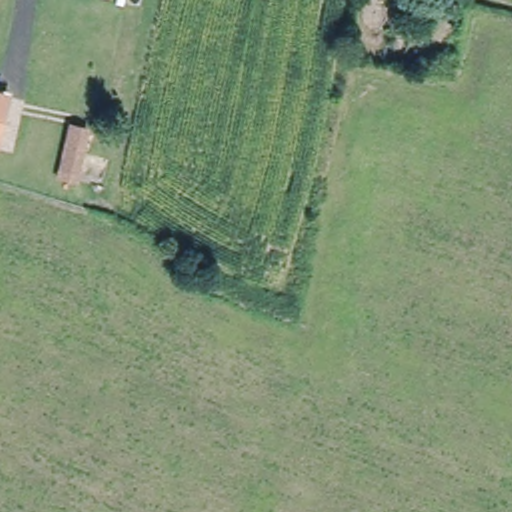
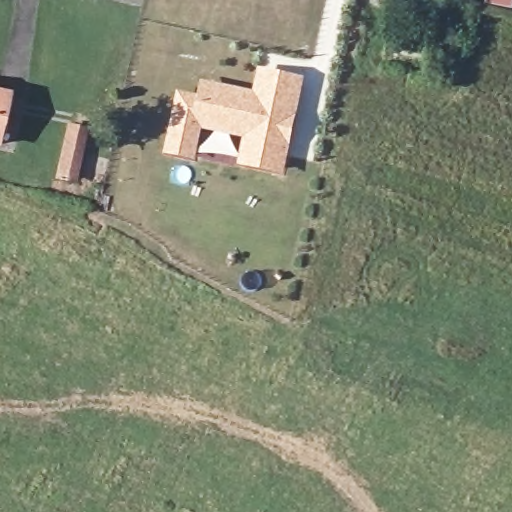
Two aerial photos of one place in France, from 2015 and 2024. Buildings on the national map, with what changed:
new [(285,169),(248,162),(254,134),(203,124),(196,156),(175,152),(185,98),(206,102),(209,87),(261,98),(266,73),(303,81),(295,118),(290,141),(285,169)]
unchanged [(0,139),(0,94),(9,96),(0,139)]
unchanged [(91,130),(79,180),(61,175),(73,126),(91,130)]

